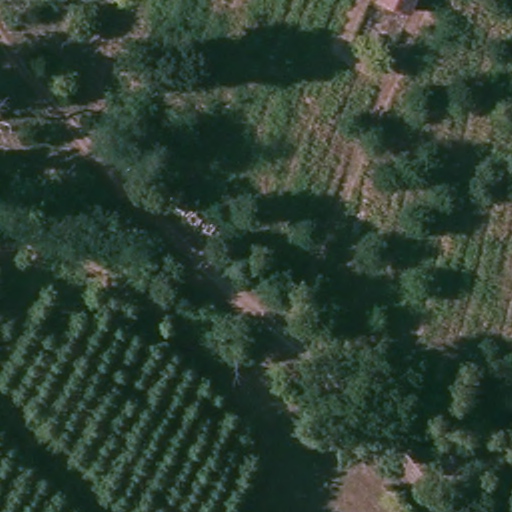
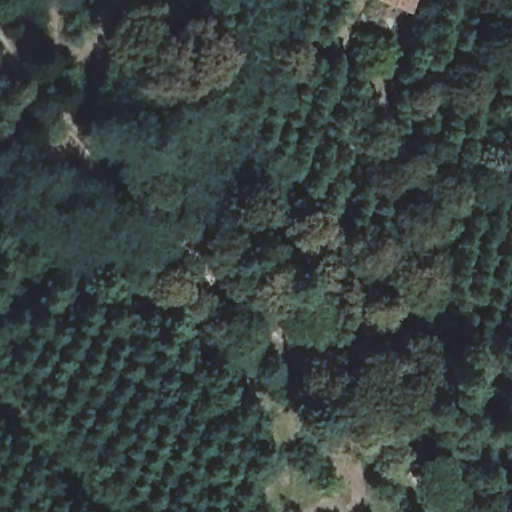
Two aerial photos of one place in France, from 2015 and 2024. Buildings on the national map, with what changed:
unchanged [(419,0),(412,14),(380,0),(419,0)]

